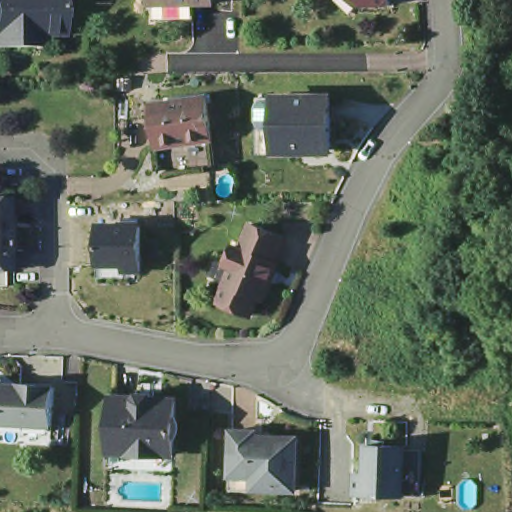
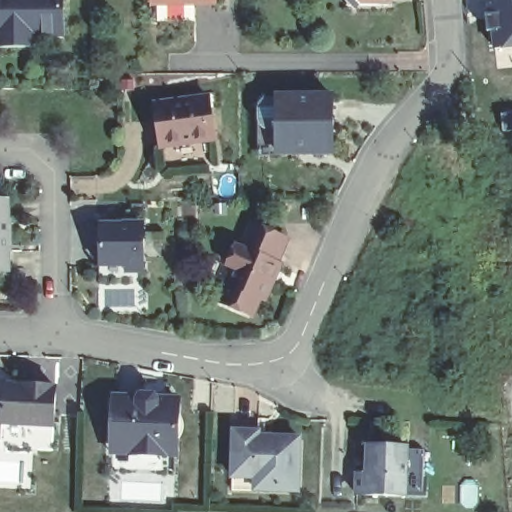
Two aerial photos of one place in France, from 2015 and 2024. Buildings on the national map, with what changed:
unchanged [(6,42),(0,42),(0,34),(0,0),(66,0),(66,34),(39,34),(39,42),(25,42),(6,42)]
unchanged [(213,0),(213,7),(156,7),(156,0),(213,0)]
unchanged [(385,0),(386,5),(339,6),(339,0),(385,0)]
new [(493,30),(489,30),(486,0),(512,0),(512,49),(496,51),(493,30)]
unchanged [(155,104),(208,97),(213,139),(161,146),(155,104)]
unchanged [(285,150),(268,150),(268,97),(285,97),(342,97),(343,150),(319,150),(306,150),(285,150)]
new [(512,135),(502,135),(500,111),(512,111),(512,135)]
unchanged [(6,205),(8,276),(0,276),(0,205),(6,205)]
unchanged [(148,222),(146,277),(126,276),(125,268),(100,268),(103,222),(148,222)]
unchanged [(279,269),(271,286),(264,304),(259,302),(252,320),(219,306),(221,303),(219,303),(226,288),(227,288),(228,286),(231,287),(238,274),(227,270),(236,250),(241,252),(251,229),(285,243),(274,267),(276,267),(279,269)]
unchanged [(4,377),(4,382),(20,382),(20,378),(53,380),(53,382),(55,382),(53,420),(23,418),(1,417),(1,405),(0,404),(0,377),(4,377)]
unchanged [(176,459),(158,458),(158,461),(137,460),(129,452),(111,451),(113,426),(115,426),(116,402),(136,402),(139,398),(154,398),(157,403),(178,405),(176,459)]
unchanged [(231,493),(231,481),(233,436),(235,436),(258,437),(258,423),(264,423),(264,437),(271,437),(271,442),(299,442),(296,495),(272,494),(254,493),(233,493),(231,493)]
unchanged [(406,451),(404,501),(356,499),(357,477),(366,477),(368,450),(406,451)]

